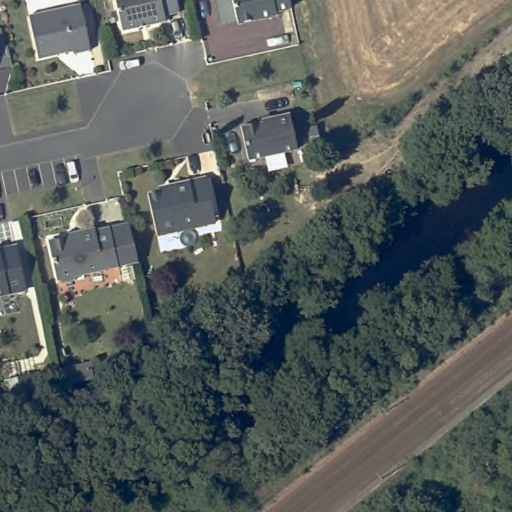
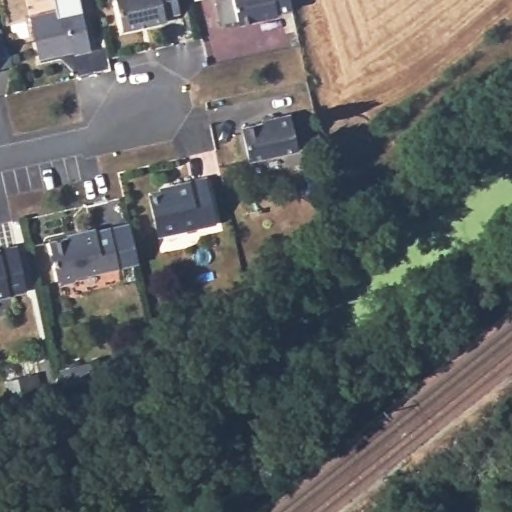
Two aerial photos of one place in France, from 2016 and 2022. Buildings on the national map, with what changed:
unchanged [(181,12),(166,16),(167,21),(124,32),(116,0),(178,0),(181,12)]
unchanged [(287,16),(271,19),(270,16),(233,24),(227,0),(283,0),(287,16)]
unchanged [(81,2),(92,47),(76,51),(74,47),(40,55),(30,14),(81,2)]
unchanged [(0,59),(0,39),(5,58),(0,59)]
unchanged [(295,151),(246,162),(241,138),(239,129),(258,124),(258,121),(287,115),(291,135),(295,151)]
unchanged [(169,188),(168,184),(202,175),(212,220),(154,234),(145,193),(169,188)]
unchanged [(124,247),(127,265),(67,278),(64,283),(52,286),(47,283),(39,244),(67,238),(67,235),(84,231),(85,234),(119,226),(124,247)]
unchanged [(26,286),(0,292),(0,247),(16,243),(26,286)]

